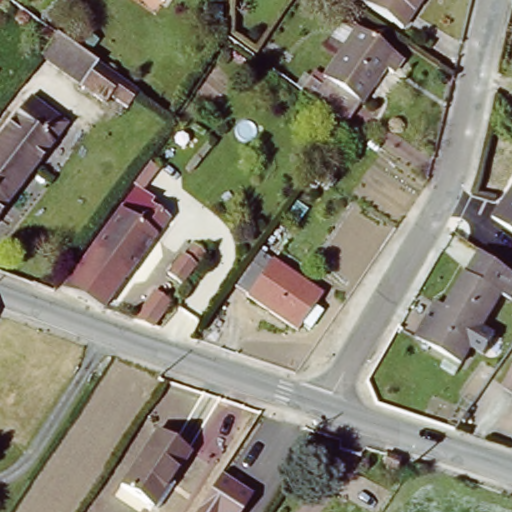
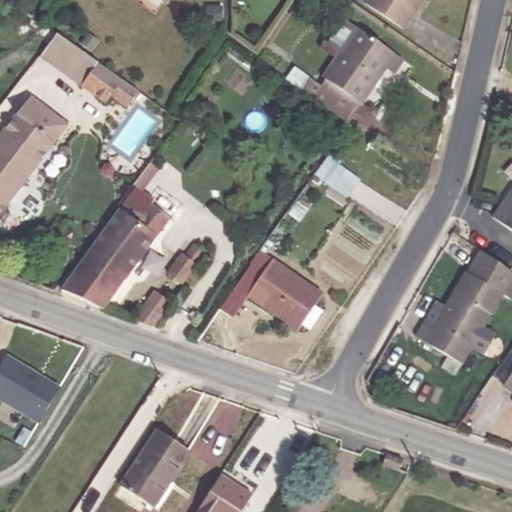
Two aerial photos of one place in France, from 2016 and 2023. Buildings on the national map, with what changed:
unchanged [(367,0),(425,0),(407,29),(365,2),(367,0)]
unchanged [(332,108),(314,95),(324,80),(360,31),(405,62),(395,75),(387,70),(362,107),(350,122),(332,108)]
unchanged [(57,35),(139,92),(125,111),(109,101),(105,106),(40,59),(57,35)]
unchanged [(32,102),(69,129),(0,215),(0,142),(32,102)]
unchanged [(512,188),(512,234),(491,219),(512,188)]
unchanged [(108,299),(105,305),(77,295),(78,294),(67,287),(70,282),(65,279),(72,270),(76,272),(122,210),(135,194),(148,205),(168,220),(113,292),(121,298),(116,305),(108,299)]
unchanged [(442,315),(462,274),(473,250),(512,276),(512,303),(500,296),(467,369),(428,351),(419,347),(427,329),(434,311),(442,315)]
unchanged [(180,288),(170,280),(184,261),(188,263),(197,251),(202,255),(180,288)]
unchanged [(315,331),(304,323),(299,331),(235,289),(250,267),(262,275),(271,262),(322,297),(315,308),(325,315),(315,331)]
unchanged [(154,327),(135,321),(152,298),(167,309),(154,327)]
new [(6,356),(60,387),(37,423),(0,400),(0,365),(6,356)]
unchanged [(512,385),(509,383),(512,379),(512,385)]
unchanged [(139,500),(119,486),(157,430),(176,443),(139,500)]
unchanged [(176,443),(191,453),(153,510),(139,500),(176,443)]
unchanged [(386,464),(398,470),(392,480),(379,475),(386,464)]
unchanged [(249,492),(236,512),(193,512),(218,474),(249,492)]

